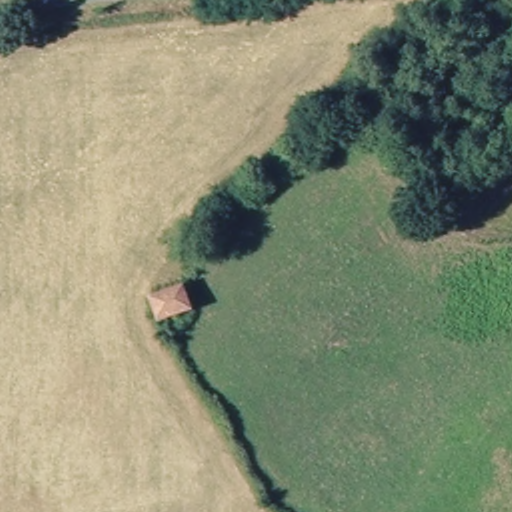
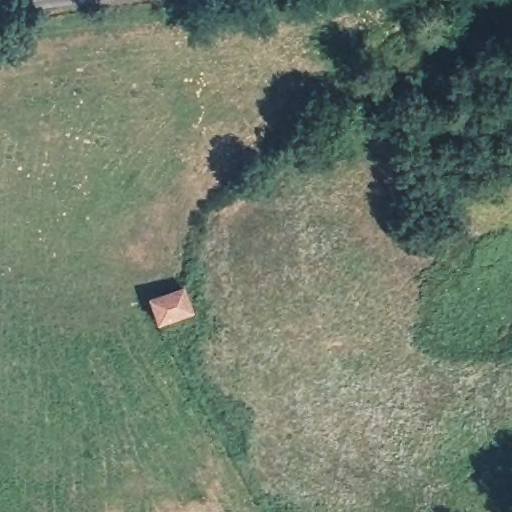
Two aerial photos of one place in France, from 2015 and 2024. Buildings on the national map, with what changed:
unchanged [(162,328),(151,303),(186,288),(199,311),(162,328)]

